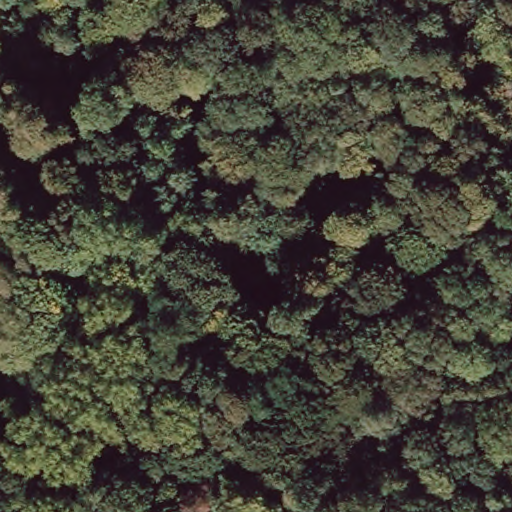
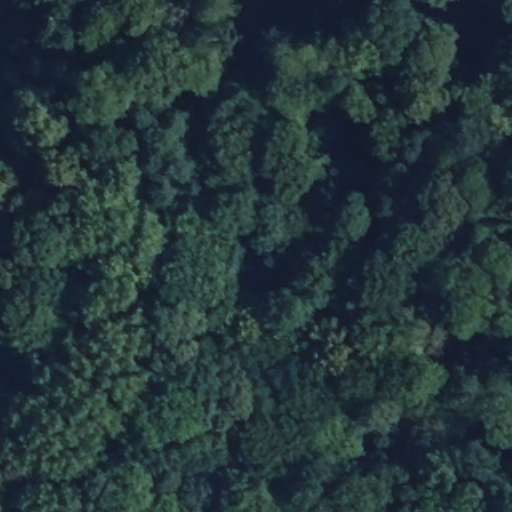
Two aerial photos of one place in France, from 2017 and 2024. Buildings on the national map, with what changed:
unchanged [(62,413),(66,406),(70,403),(73,407),(73,413),(70,421),(65,424),(60,421),(62,413)]

